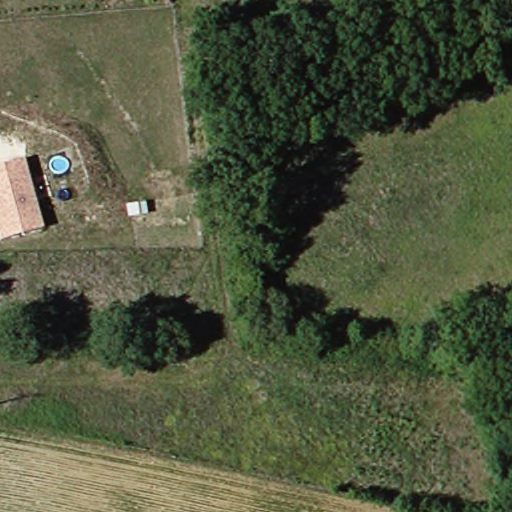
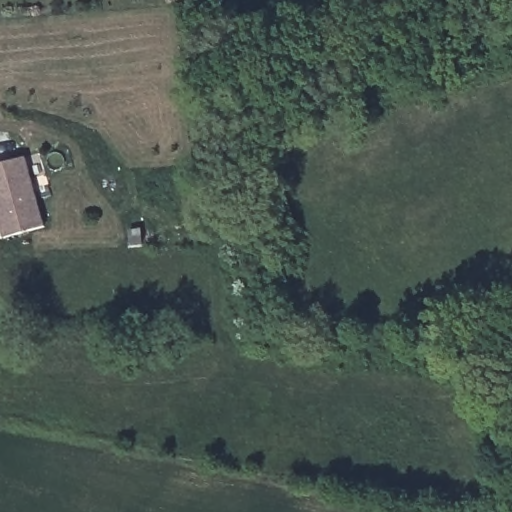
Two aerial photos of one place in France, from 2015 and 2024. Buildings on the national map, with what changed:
unchanged [(6,243),(0,224),(0,164),(27,155),(47,228),(6,243)]

